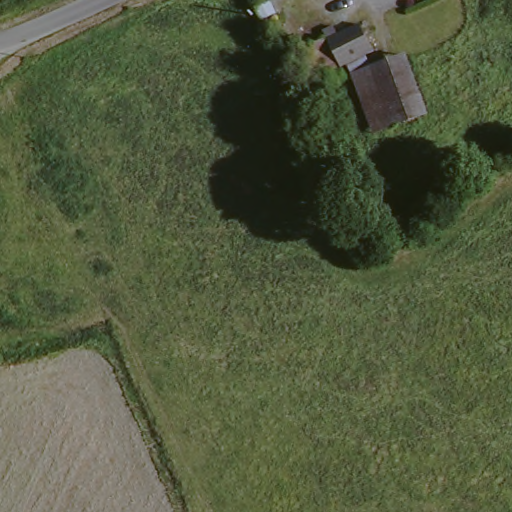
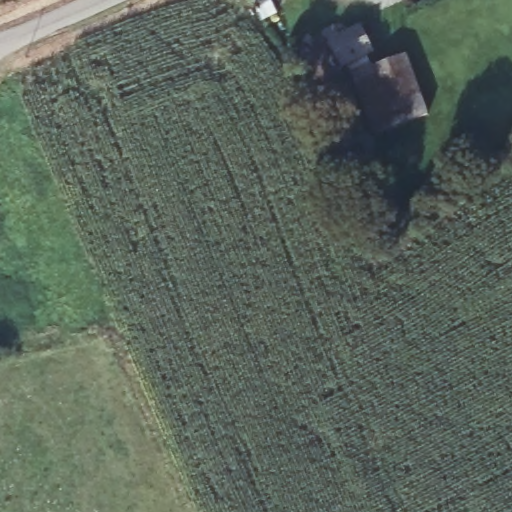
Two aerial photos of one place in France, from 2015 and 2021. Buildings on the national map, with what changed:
unchanged [(290,7),(277,12),(270,0),(287,0),(290,7)]
unchanged [(320,35),(328,31),(333,39),(356,28),(370,57),(338,72),(320,35)]
unchanged [(424,119),(371,138),(363,114),(350,79),(402,60),(416,95),(424,119)]

